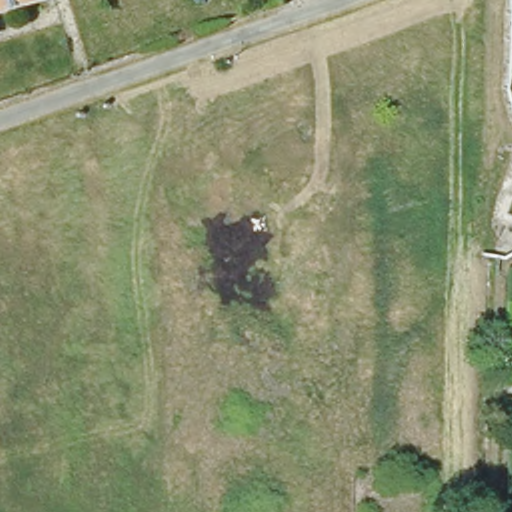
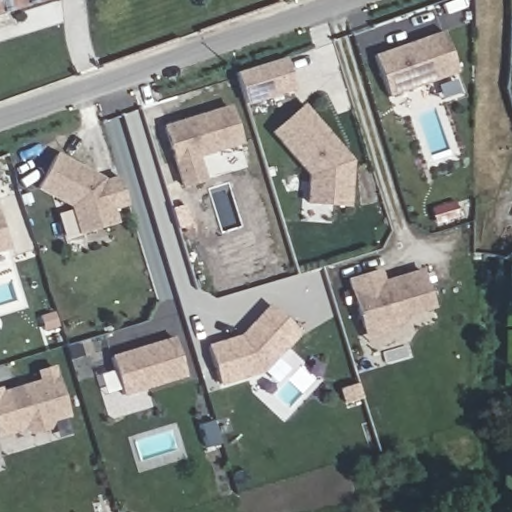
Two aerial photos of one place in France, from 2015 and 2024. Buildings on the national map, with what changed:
unchanged [(0,0),(38,0),(0,12),(0,0)]
new [(391,95),(376,54),(445,29),(459,70),(391,95)]
new [(237,73),(285,58),(295,88),(247,106),(242,89),(237,73)]
new [(340,142),(353,157),(349,201),(309,198),(311,170),(274,128),(305,101),(340,142)]
new [(167,125),(232,106),(243,141),(199,154),(206,178),(185,184),(167,125)]
new [(115,209),(119,224),(79,234),(72,206),(39,190),(56,152),(106,178),(120,175),(129,205),(115,209)]
demolished [(512,193),(512,231),(492,223),(504,189),(512,193)]
new [(0,253),(0,212),(11,250),(0,253)]
new [(408,316),(404,324),(389,329),(384,336),(367,340),(348,278),(382,269),(384,280),(424,269),(436,308),(408,316)]
new [(243,336),(272,305),(302,332),(270,368),(220,383),(209,346),(243,336)]
new [(133,351),(139,349),(176,338),(188,375),(124,394),(113,357),(133,351)]
new [(4,391),(44,379),(41,369),(56,365),(70,414),(54,419),(50,427),(35,431),(26,427),(0,435),(0,387),(2,386),(4,391)]

